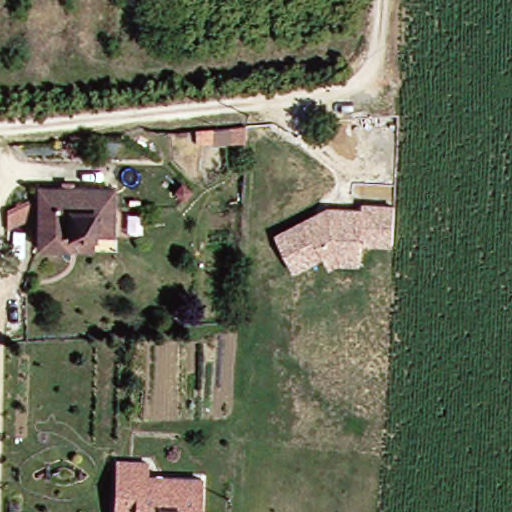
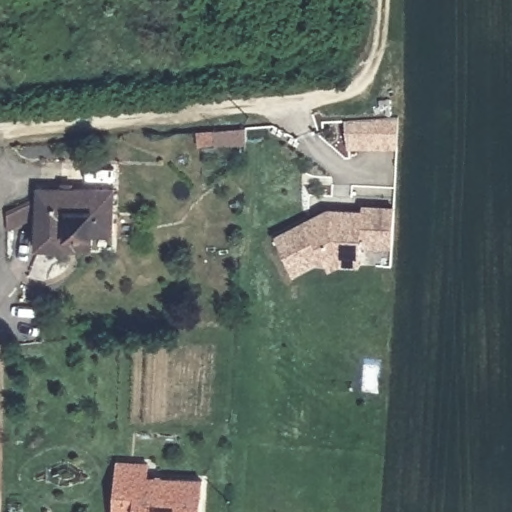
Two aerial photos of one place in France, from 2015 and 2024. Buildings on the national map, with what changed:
new [(347,149),(347,119),(400,120),(399,149),(347,149)]
unchanged [(74,251),(44,250),(45,219),(10,232),(11,215),(46,201),(47,190),(120,192),(121,234),(97,234),(96,239),(95,252),(74,251)]
unchanged [(338,265),(327,269),(322,258),(292,270),(277,234),(319,216),(322,222),(327,219),(327,212),(362,213),(362,209),(394,210),(392,247),(362,246),(361,253),(361,266),(338,265)]
unchanged [(156,462),(156,474),(208,477),(207,512),(121,512),(123,461),(156,462)]

